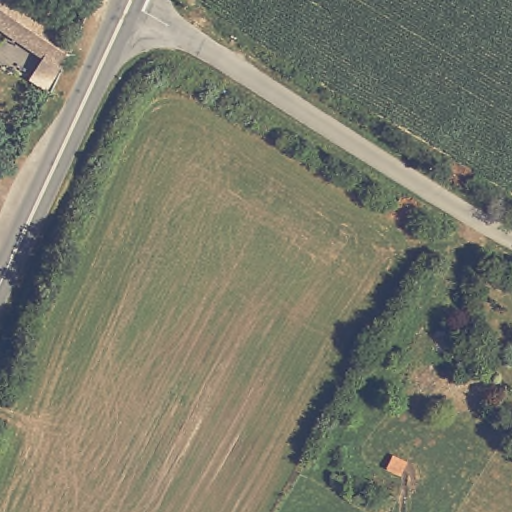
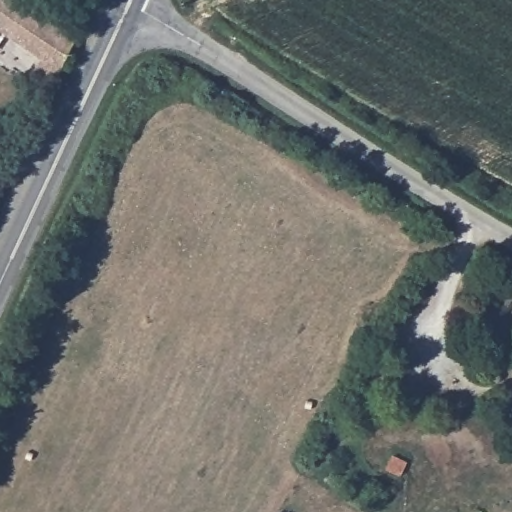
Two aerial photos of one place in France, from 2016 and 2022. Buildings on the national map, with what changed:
unchanged [(50,30),(77,48),(69,65),(63,77),(0,36),(0,0),(6,0),(21,9),(26,1),(56,21),(50,30)]

